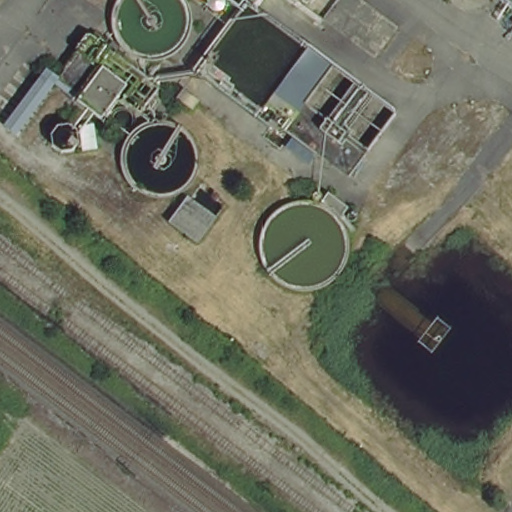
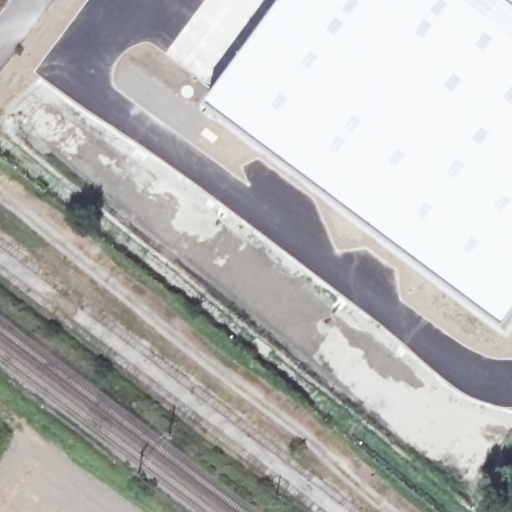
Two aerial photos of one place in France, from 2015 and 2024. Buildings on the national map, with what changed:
demolished [(207,63),(252,0),(254,0),(402,111),(354,175),(207,63)]
new [(512,0),(512,320),(505,329),(326,200),(281,162),(207,106),(286,0),(512,0)]
demolished [(506,0),(512,0),(512,5),(506,0)]
demolished [(55,76),(59,71),(89,31),(154,81),(135,106),(121,96),(134,80),(97,53),(91,61),(100,68),(103,62),(126,80),(98,115),(90,110),(94,105),(64,82),(55,76)]
demolished [(179,109),(188,97),(202,108),(193,120),(179,109)]
demolished [(105,118),(105,114),(106,111),(107,109),(110,106),(112,105),(115,104),(119,104),(122,105),(125,106),(127,109),(128,111),(129,114),(129,118),(128,121),(127,123),(125,125),(122,127),(119,128),(115,128),(112,127),(110,125),(107,123),(106,121),(105,118)]
demolished [(57,149),(57,146),(58,141),(60,138),(62,135),(65,133),(69,132),(73,131),(77,133),(80,134),(83,136),(85,140),(86,144),(87,148),(86,151),(85,155),(81,158),(78,160),(75,161),(71,161),(67,161),(63,159),(61,156),(58,153),(57,149)]
demolished [(194,239),(167,218),(185,195),(211,216),(194,239)]

